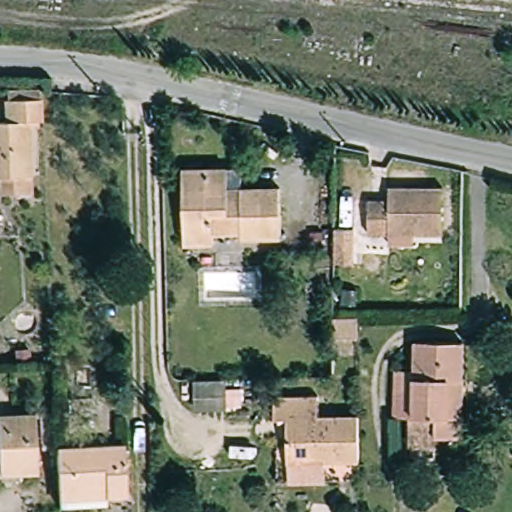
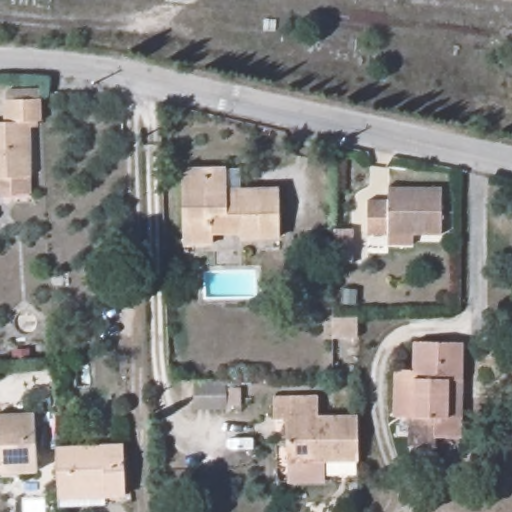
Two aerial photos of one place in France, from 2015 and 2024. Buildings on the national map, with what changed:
unchanged [(0,121),(2,121),(2,98),(43,97),(44,118),(27,119),(30,173),(31,190),(0,190),(0,121)]
unchanged [(212,240),(183,241),(181,165),(226,164),(227,188),(239,188),(239,185),(276,185),(278,232),(237,232),(237,228),(212,228),(212,240)]
unchanged [(391,237),(368,238),(366,202),(388,200),(387,186),(440,184),(442,234),(410,236),(411,250),(392,250),(391,237)]
unchanged [(410,446),(410,419),(395,419),(396,371),(414,371),(415,342),(464,343),(464,379),(463,417),(462,437),(435,436),(435,447),(410,446)]
unchanged [(199,414),(199,408),(197,382),(227,380),(227,405),(228,412),(199,414)]
unchanged [(284,429),(294,428),(293,399),(279,399),(278,382),(320,381),(321,393),(351,392),(353,439),(285,440),(284,429)]
unchanged [(0,414),(34,412),(36,466),(16,467),(17,475),(0,475),(0,414)]
unchanged [(285,440),(353,439),(354,463),(286,464),(285,440)]
unchanged [(58,446),(127,445),(128,494),(128,503),(59,504),(59,488),(58,446)]

